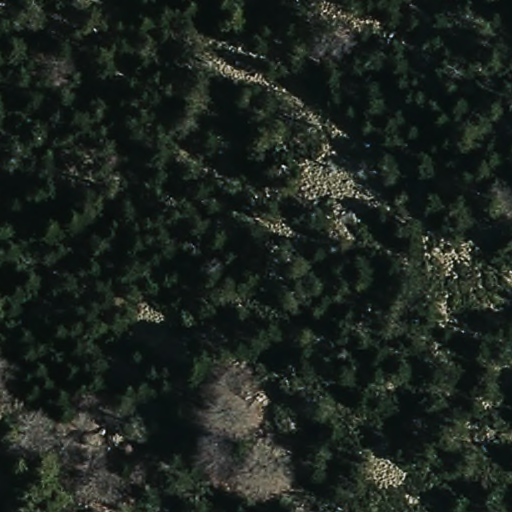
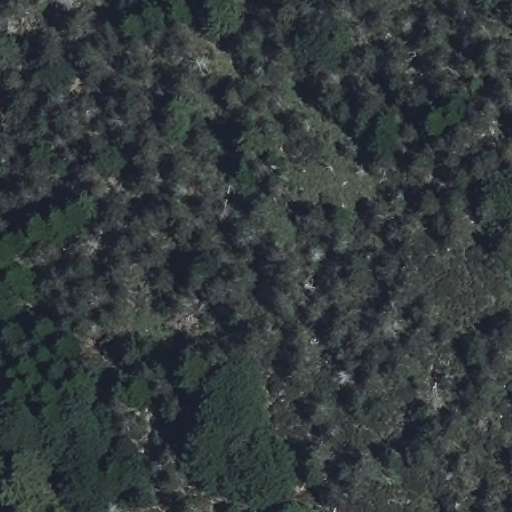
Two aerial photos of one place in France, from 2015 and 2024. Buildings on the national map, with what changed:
[]

